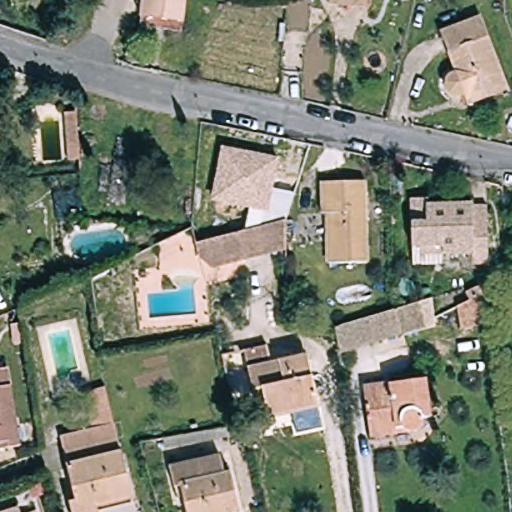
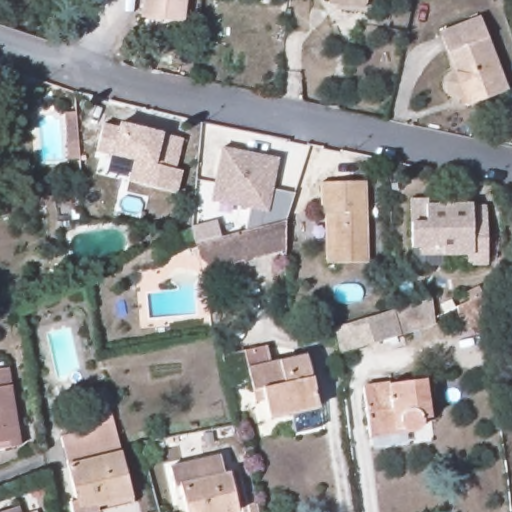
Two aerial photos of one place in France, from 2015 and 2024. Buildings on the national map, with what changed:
unchanged [(142,19),(144,0),(185,0),(182,24),(142,19)]
unchanged [(370,4),(370,8),(333,4),(333,0),(379,0),(378,5),(370,4)]
unchanged [(505,90),(467,104),(464,96),(462,97),(459,97),(455,97),(452,95),(448,92),(447,89),(446,85),(447,80),(448,76),(451,73),(455,71),(440,31),(477,17),(505,90)]
unchanged [(70,159),(65,114),(75,112),(79,159),(70,159)]
new [(117,127),(118,121),(163,133),(183,139),(176,169),(183,170),(177,193),(128,181),(132,160),(110,156),(95,152),(103,124),(117,127)]
unchanged [(218,177),(215,177),(221,150),(277,160),(266,213),(213,202),(218,177)]
unchanged [(328,265),(327,215),(322,215),(322,182),(365,182),(366,263),(328,265)]
unchanged [(473,271),(473,260),(443,260),(443,271),(413,271),(412,205),(427,204),(428,212),(486,210),(487,271),(473,271)]
unchanged [(286,246),(202,268),(195,245),(285,221),(286,246)]
unchanged [(335,328),(394,311),(407,307),(411,325),(400,328),(400,334),(340,352),(337,338),(335,328)]
unchanged [(293,415),(270,420),(263,388),(254,390),(245,351),(265,346),(268,365),(306,355),(318,409),(323,428),(297,434),(293,415)]
unchanged [(20,447),(0,450),(0,371),(8,370),(20,447)]
unchanged [(430,417),(424,418),(424,422),(423,426),(420,430),(417,432),(413,433),(409,433),(405,432),(371,437),(363,389),(425,380),(430,417)]
unchanged [(73,512),(70,503),(77,501),(62,439),(95,431),(87,393),(105,389),(114,427),(120,450),(132,500),(80,512),(73,512)]
unchanged [(186,512),(183,498),(177,500),(169,468),(220,456),(224,475),(230,473),(239,511),(235,512),(186,512)]

